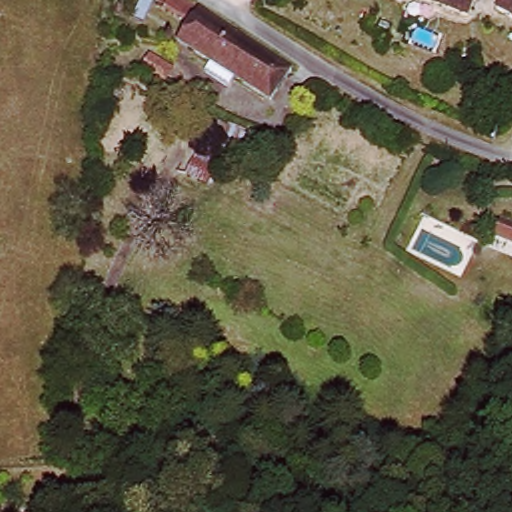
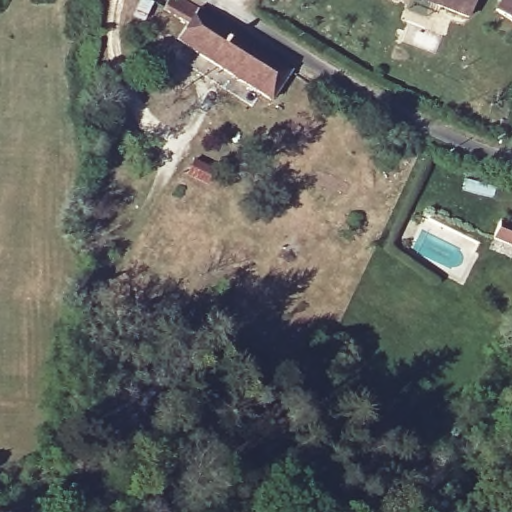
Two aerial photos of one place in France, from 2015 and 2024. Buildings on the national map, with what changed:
unchanged [(162,8),(167,0),(179,0),(209,19),(291,71),(272,104),(177,41),(187,26),(162,8)]
unchanged [(411,2),(406,0),(412,0),(411,2)]
unchanged [(479,24),(449,11),(421,0),(490,0),(479,24)]
unchanged [(495,15),(501,0),(512,0),(512,22),(495,15)]
unchanged [(151,72),(160,61),(184,77),(177,87),(151,72)]
unchanged [(501,241),(510,226),(512,227),(512,246),(501,241)]

